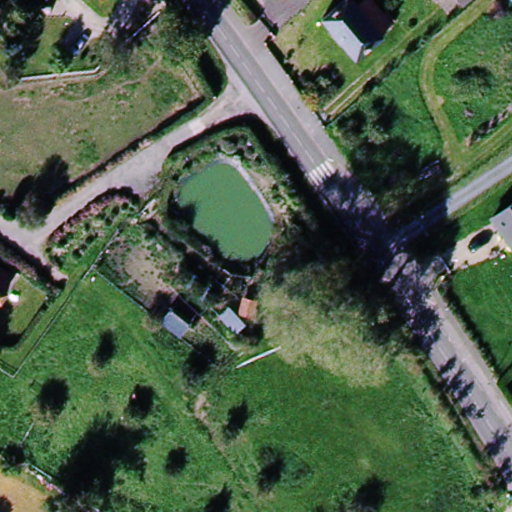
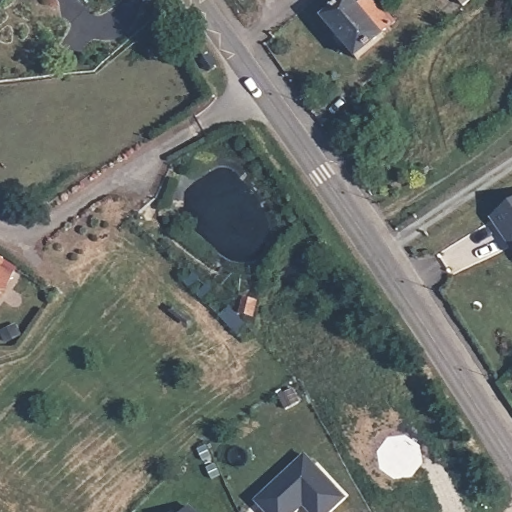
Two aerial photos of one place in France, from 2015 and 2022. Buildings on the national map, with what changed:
unchanged [(375,32),(380,37),(353,57),(321,17),(344,0),(349,0),(355,7),(364,0),(367,0),(387,24),(375,32)]
unchanged [(477,0),(463,7),(459,0),(477,0)]
unchanged [(512,205),(512,244),(497,215),(512,205)]
unchanged [(7,277),(0,287),(0,272),(7,277)]
new [(305,457),(345,498),(331,512),(310,512),(301,503),(297,507),(300,510),(297,512),(265,512),(257,503),(305,457)]
new [(193,505),(200,512),(186,512),(193,505)]

